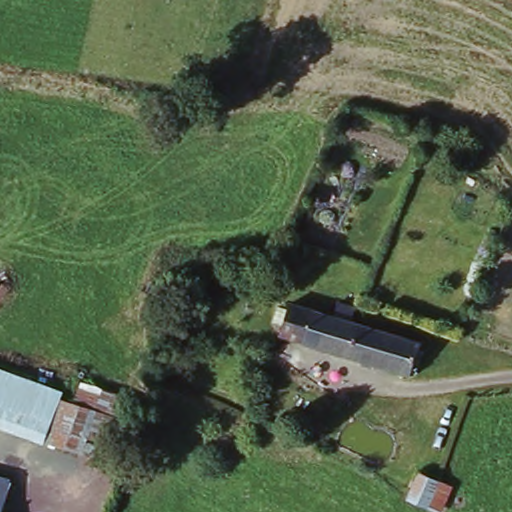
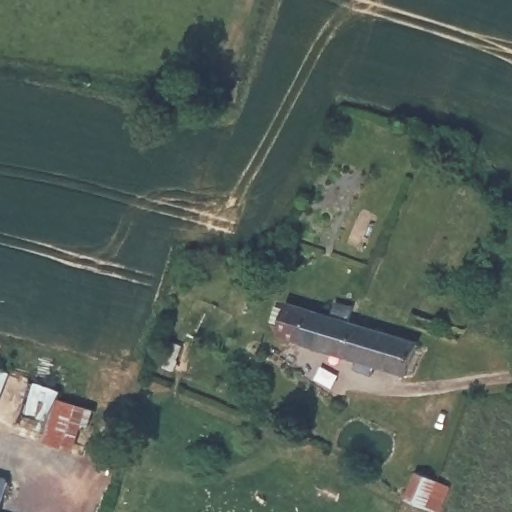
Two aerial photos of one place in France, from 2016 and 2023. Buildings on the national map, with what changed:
unchanged [(407,376),(278,336),(281,326),(273,320),(277,306),(287,309),(288,303),(331,317),(336,303),(355,309),(353,323),(419,345),(407,376)]
unchanged [(64,404),(52,448),(0,428),(0,368),(61,390),(59,402),(64,404)]
unchanged [(427,512),(406,504),(410,492),(418,478),(437,487),(449,492),(440,512),(427,512)]
unchanged [(1,512),(0,512),(0,480),(11,483),(1,512)]

